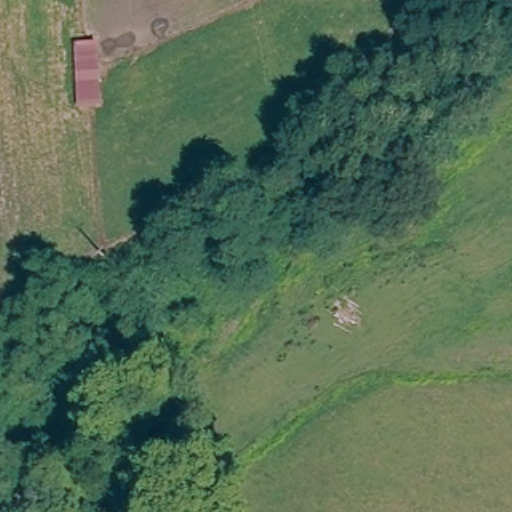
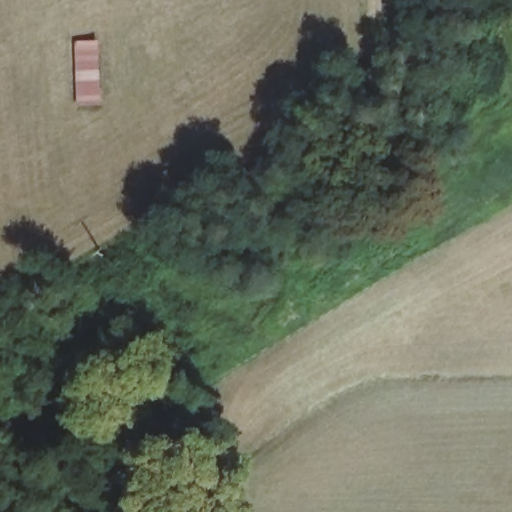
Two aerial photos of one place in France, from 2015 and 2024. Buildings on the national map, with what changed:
unchanged [(78,106),(74,45),(100,42),(105,103),(78,106)]

